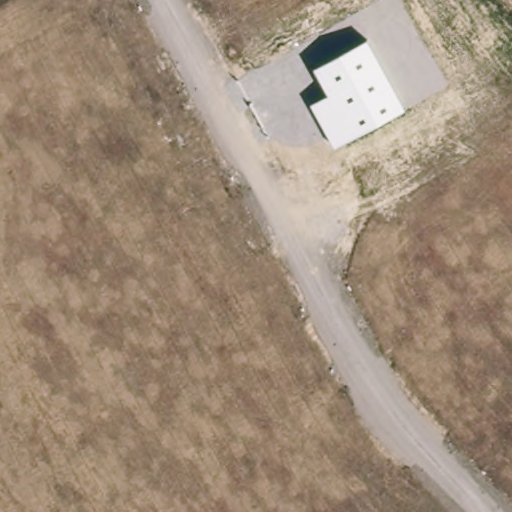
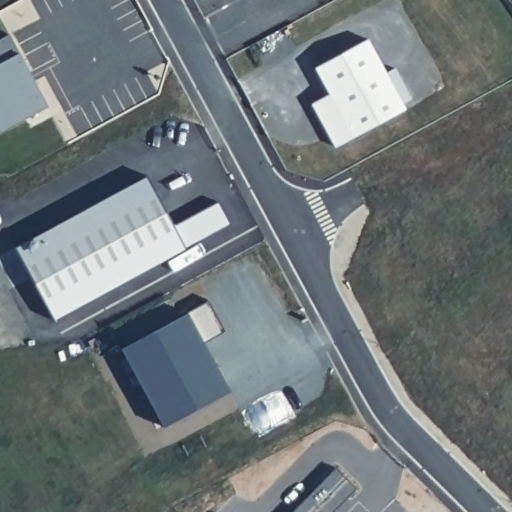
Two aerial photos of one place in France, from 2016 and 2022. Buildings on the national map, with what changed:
unchanged [(405,110),(335,146),(312,103),(327,93),(314,68),(368,39),(405,110)]
new [(50,111),(0,139),(0,46),(11,40),(50,111)]
new [(150,178),(190,251),(56,325),(16,252),(150,178)]
new [(164,427),(122,349),(187,314),(209,303),(226,330),(204,345),(229,392),(164,427)]
new [(355,489),(332,512),(293,512),(335,470),(355,489)]

